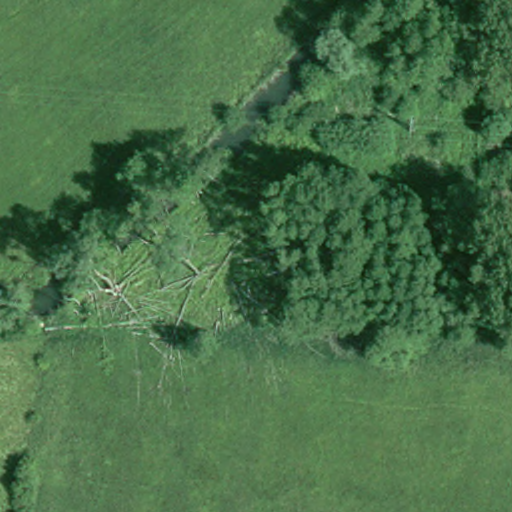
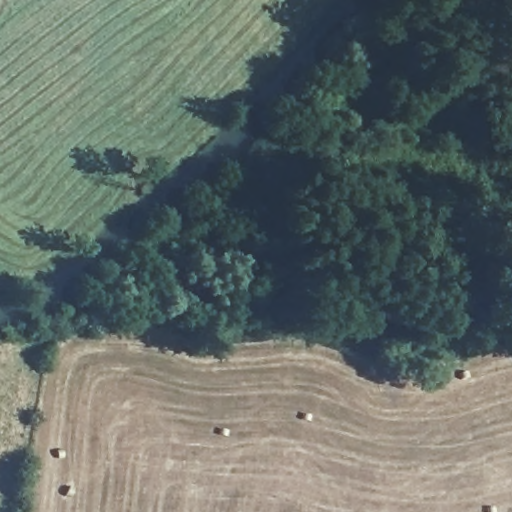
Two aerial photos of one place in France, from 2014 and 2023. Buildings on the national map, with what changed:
[]

